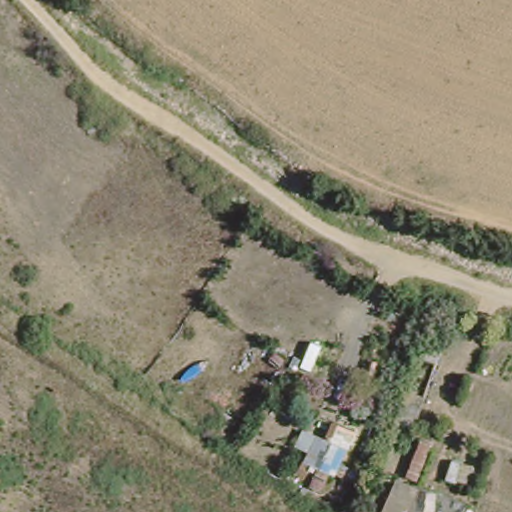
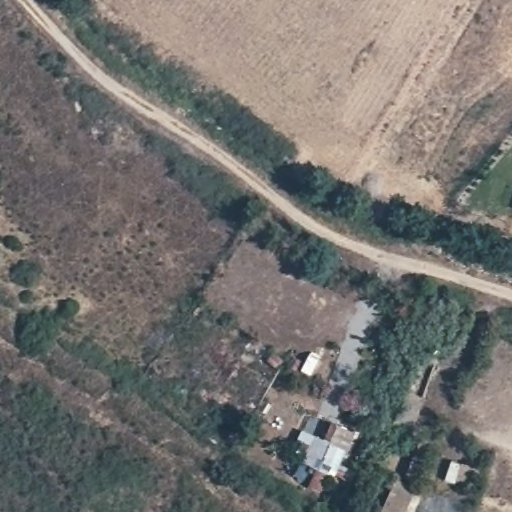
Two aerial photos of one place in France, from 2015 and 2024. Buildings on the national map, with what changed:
unchanged [(390,431),(420,339),(452,344),(449,365),(434,361),(411,439),(390,431)]
unchanged [(324,494),(306,487),(314,468),(304,464),(308,454),(296,448),(303,431),(328,442),(336,424),(352,431),(324,494)]
unchanged [(418,483),(407,512),(381,512),(396,473),(418,483)]

